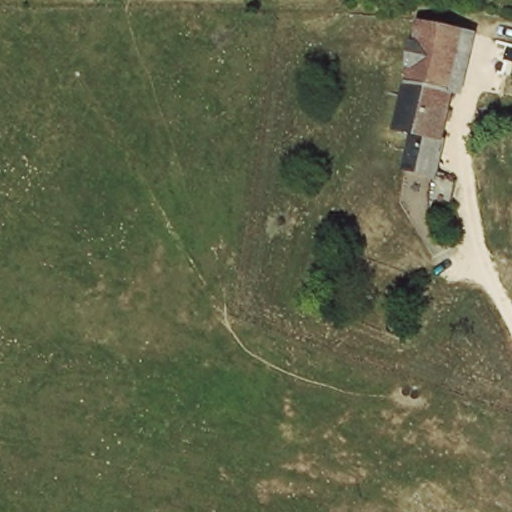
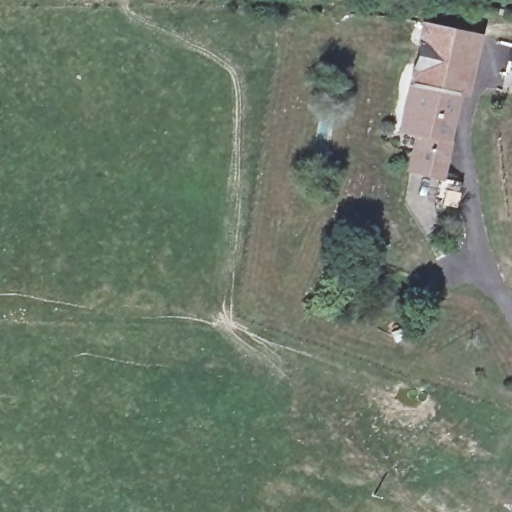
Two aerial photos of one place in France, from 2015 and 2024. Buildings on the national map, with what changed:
unchanged [(450,185),(423,181),(425,143),(412,143),(427,30),(453,30),(469,35),(450,185)]

